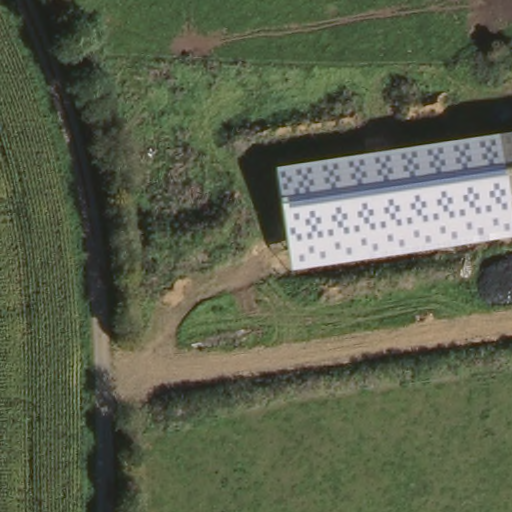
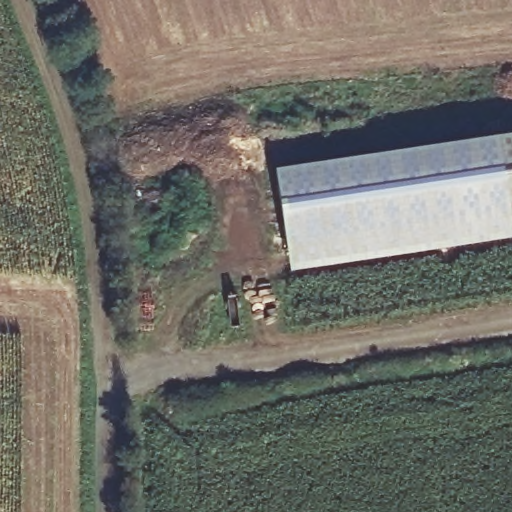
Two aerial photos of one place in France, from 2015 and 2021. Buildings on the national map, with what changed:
unchanged [(296,273),(285,173),(512,140),(512,241),(296,273)]

